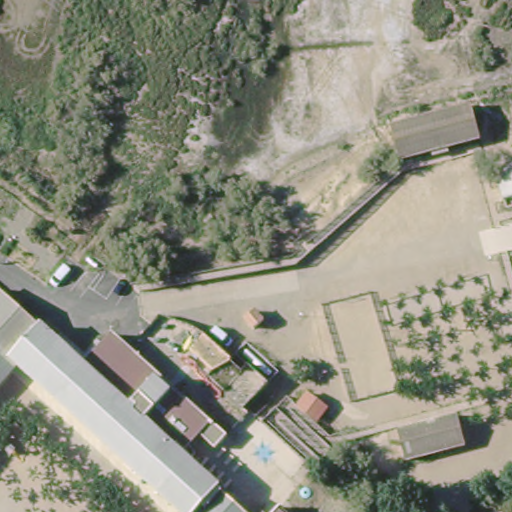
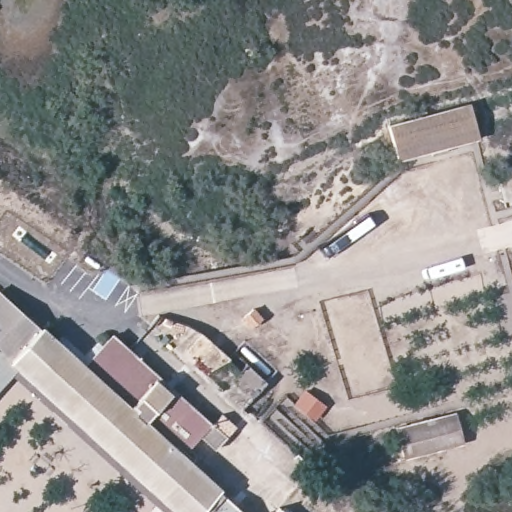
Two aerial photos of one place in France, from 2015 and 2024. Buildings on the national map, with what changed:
unchanged [(389,127),(470,105),(479,137),(397,159),(389,127)]
unchanged [(504,202),(495,172),(512,168),(512,199),(504,202)]
unchanged [(0,372),(0,292),(39,327),(84,368),(111,338),(171,392),(223,440),(214,450),(198,434),(179,455),(243,512),(180,512),(11,360),(0,372)]
unchanged [(252,328),(243,317),(254,308),(263,318),(252,328)]
unchanged [(201,335),(227,360),(209,374),(184,350),(201,335)]
unchanged [(266,385),(238,412),(218,392),(244,366),(266,385)]
unchanged [(324,412),(314,423),(296,408),(306,396),(324,412)]
unchanged [(457,414),(464,443),(404,458),(397,429),(457,414)]
unchanged [(277,512),(279,510),(281,512),(277,512)]

